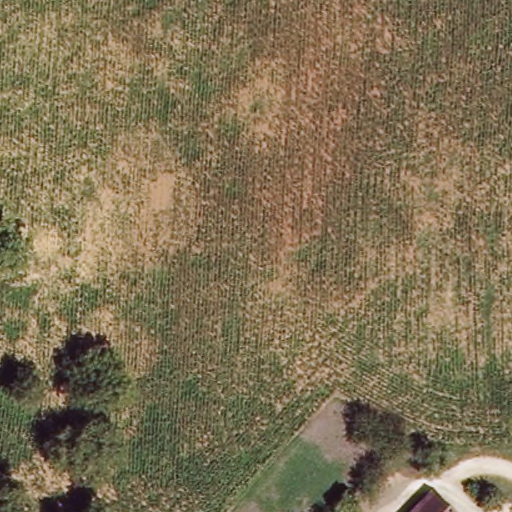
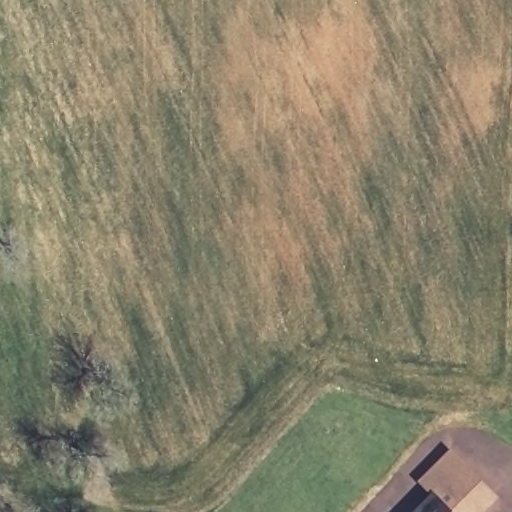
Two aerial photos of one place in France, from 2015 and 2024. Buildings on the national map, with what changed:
new [(417,480),(450,447),(498,495),(480,512),(444,512),(428,496),(417,480)]
unchanged [(444,512),(412,512),(428,496),(444,512)]

